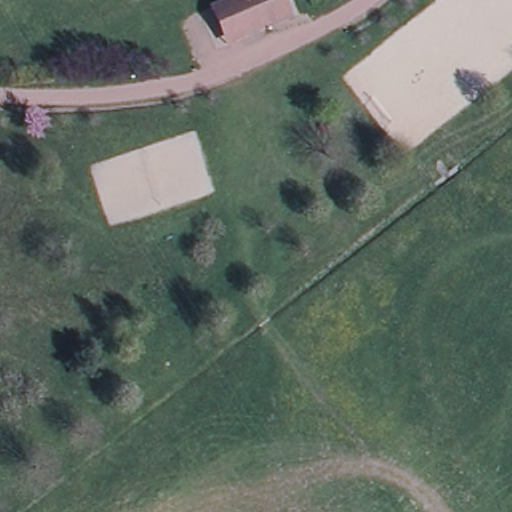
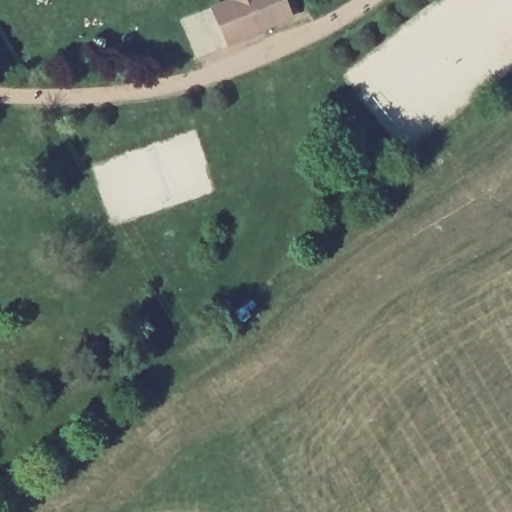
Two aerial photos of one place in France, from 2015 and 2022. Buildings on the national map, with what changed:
unchanged [(267,30),(270,35),(270,36),(239,50),(238,49),(230,52),(214,17),(254,0),(282,0),(291,20),(267,30)]

